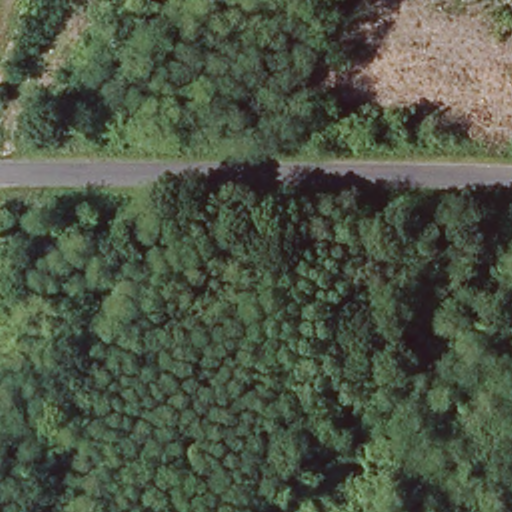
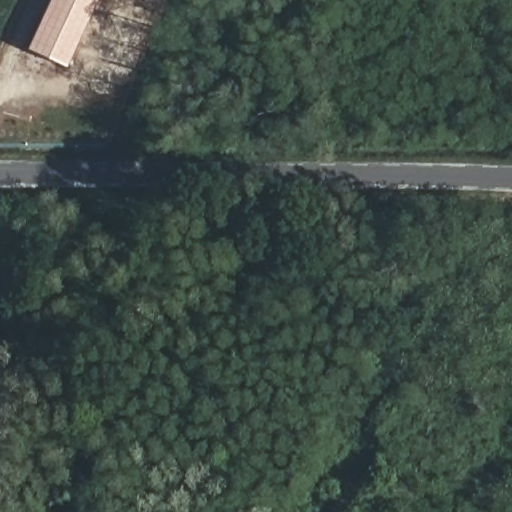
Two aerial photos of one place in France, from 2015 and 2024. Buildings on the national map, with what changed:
new [(88,0),(56,65),(20,47),(42,0),(88,0)]

